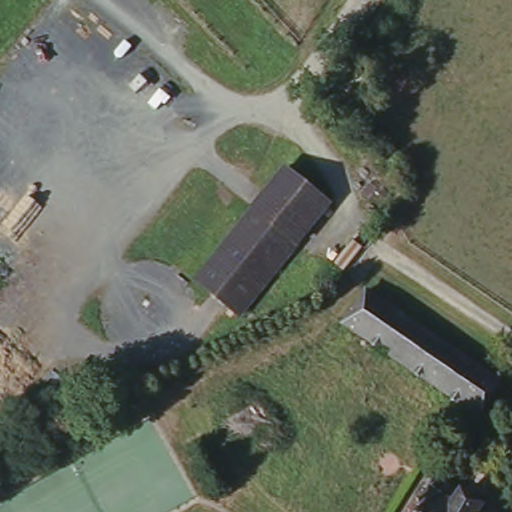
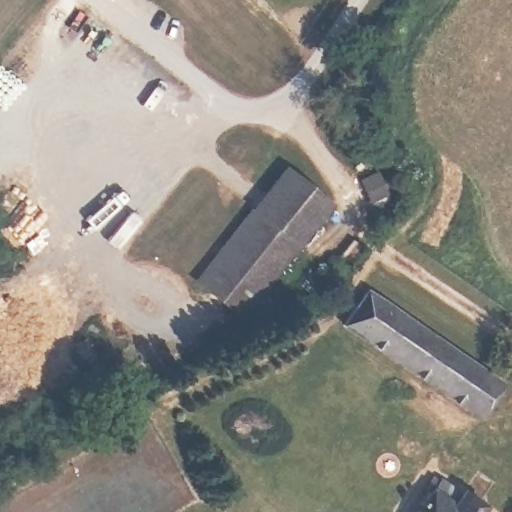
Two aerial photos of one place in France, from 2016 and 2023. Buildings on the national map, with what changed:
unchanged [(290,167),(337,209),(238,312),(195,271),(290,167)]
unchanged [(481,408),(354,313),(360,303),(371,288),(499,383),(481,408)]
unchanged [(440,475),(485,503),(480,512),(416,512),(440,475)]

